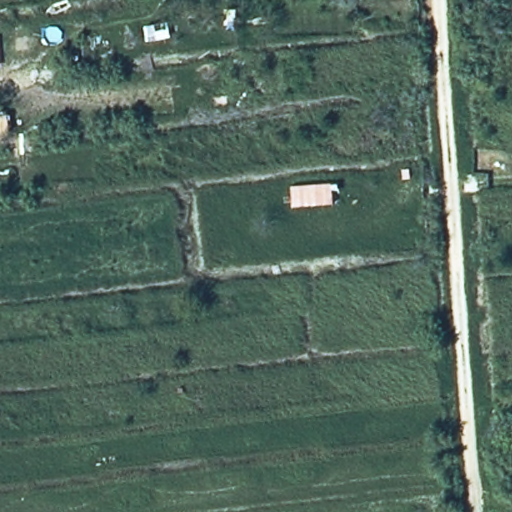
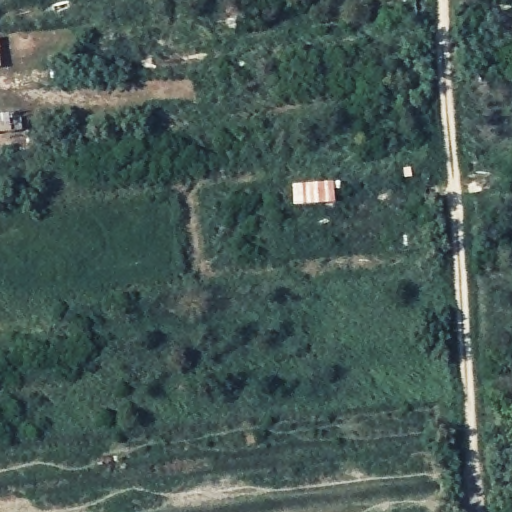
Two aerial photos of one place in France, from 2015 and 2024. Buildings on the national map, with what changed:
unchanged [(5,38),(8,71),(0,72),(0,38),(5,38)]
unchanged [(291,192),(337,188),(337,208),(293,212),(291,192)]

